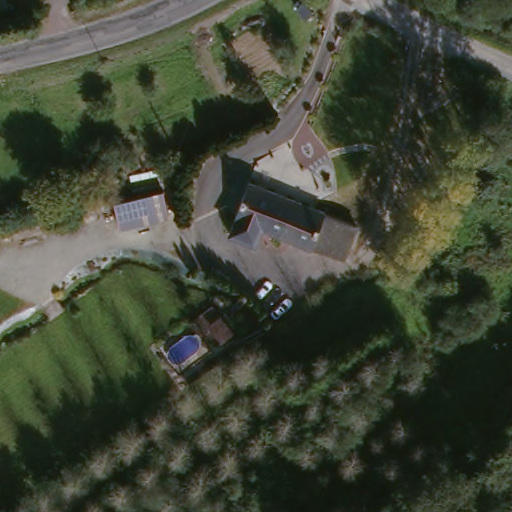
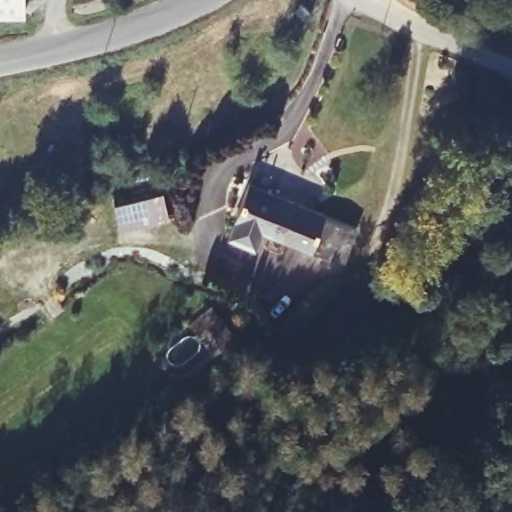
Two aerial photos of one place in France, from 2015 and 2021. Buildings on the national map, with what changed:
new [(0,15),(0,0),(26,0),(26,14),(0,15)]
unchanged [(278,235),(253,227),(246,245),(220,236),(242,181),(289,199),(312,210),(348,223),(336,256),(278,235)]
unchanged [(104,234),(100,204),(161,193),(164,221),(104,234)]

